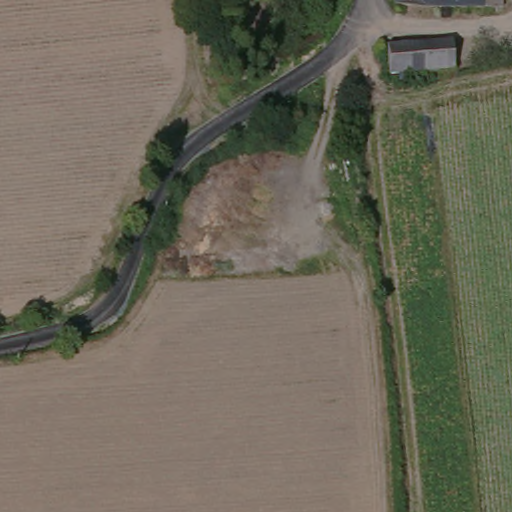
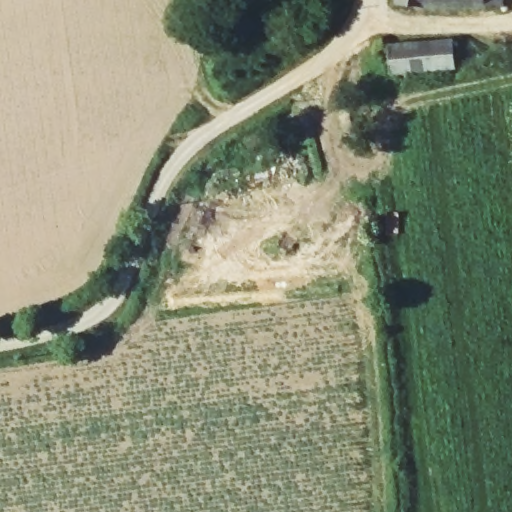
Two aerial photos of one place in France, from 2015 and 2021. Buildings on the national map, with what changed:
unchanged [(424,14),(425,26),(396,28),(397,8),(397,0),(507,0),(508,6),(424,14)]
unchanged [(391,73),(393,55),(450,48),(450,64),(391,73)]

